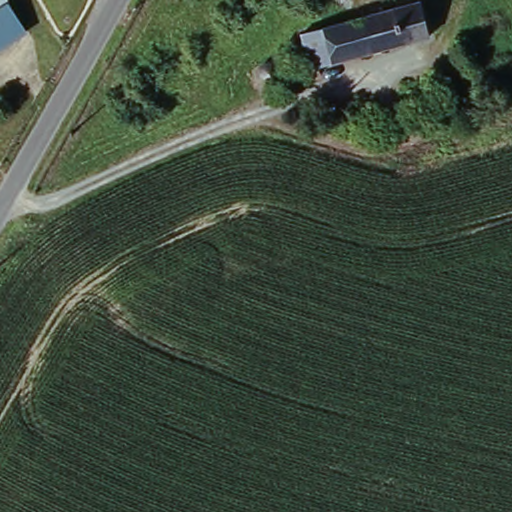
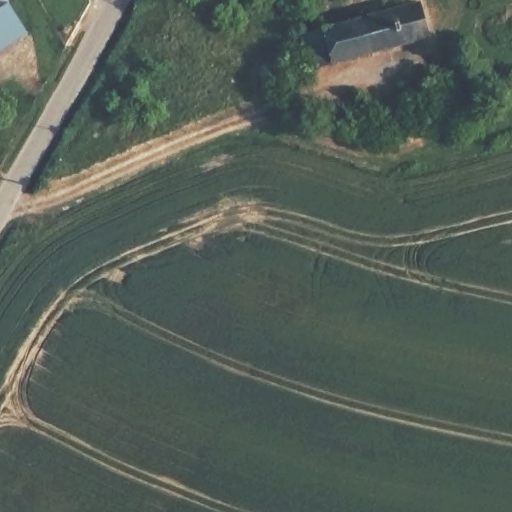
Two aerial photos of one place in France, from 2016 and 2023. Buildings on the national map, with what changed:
unchanged [(27,29),(0,48),(0,0),(8,0),(27,29)]
unchanged [(296,37),(413,3),(426,44),(309,77),(296,37)]
unchanged [(269,80),(268,80),(268,81),(268,82),(267,82),(267,83),(267,84),(267,85),(266,85),(265,85),(265,86),(264,86),(263,86),(262,86),(261,86),(260,86),(259,86),(258,86),(257,86),(257,85),(256,85),(255,85),(255,84),(254,84),(254,83),(254,82),(253,82),(253,81),(253,80),(252,80),(252,79),(252,78),(252,77),(252,76),(253,76),(253,75),(254,75),(254,74),(255,74),(255,73),(255,72),(256,72),(256,71),(257,71),(258,70),(259,70),(260,70),(261,70),(262,70),(263,70),(263,71),(264,71),(265,71),(266,71),(266,72),(267,72),(267,73),(267,74),(268,75),(268,76),(268,77),(269,77),(269,78),(269,79),(269,80)]

